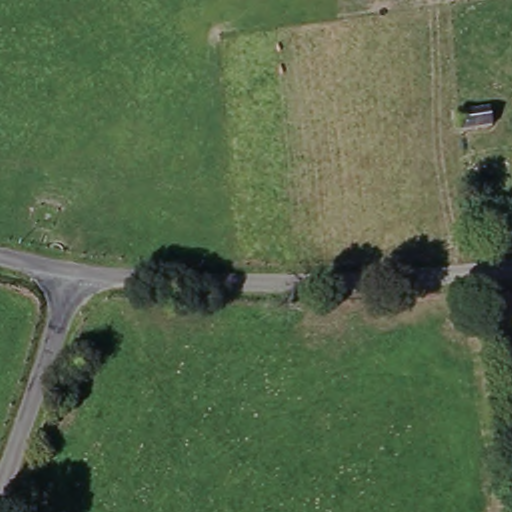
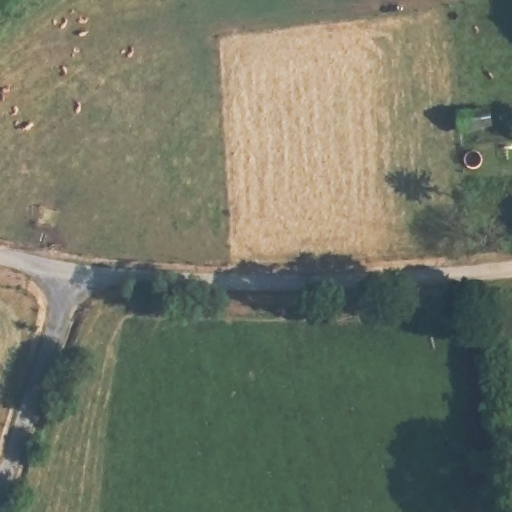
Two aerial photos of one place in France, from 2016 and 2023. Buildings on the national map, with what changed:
unchanged [(455,105),(490,101),(493,117),(458,123),(455,105)]

